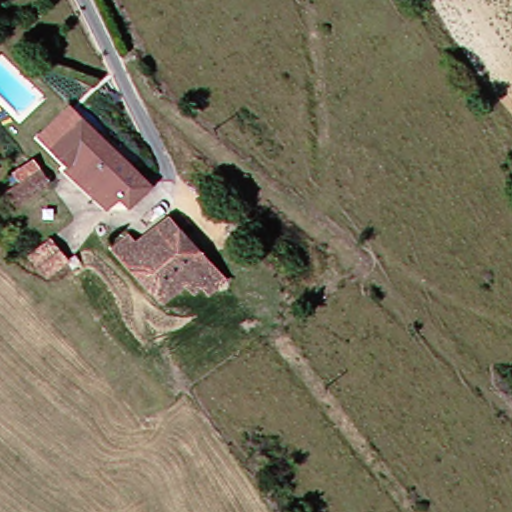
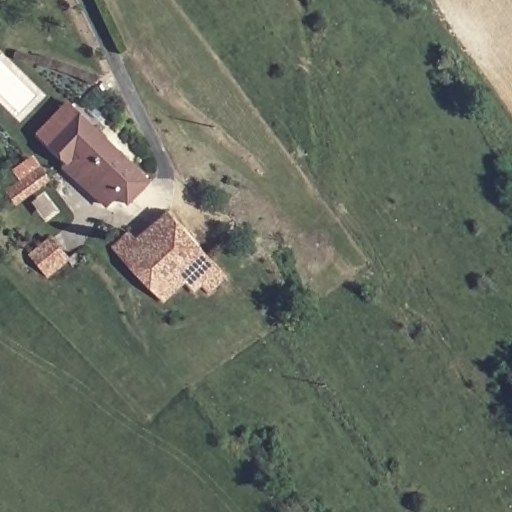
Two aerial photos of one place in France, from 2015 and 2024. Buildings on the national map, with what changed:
unchanged [(42,130),(74,96),(89,112),(57,146),(42,130)]
unchanged [(160,182),(134,211),(122,201),(115,209),(70,167),(74,163),(57,146),(89,112),(160,182)]
unchanged [(35,165),(46,179),(15,204),(4,190),(35,165)]
unchanged [(208,286),(202,292),(192,282),(170,303),(120,247),(136,231),(145,240),(175,211),(235,277),(217,294),(208,286)]
unchanged [(54,238),(68,256),(47,274),(32,254),(54,238)]

